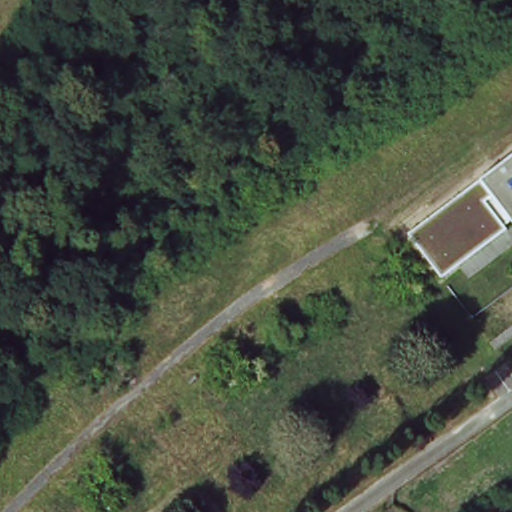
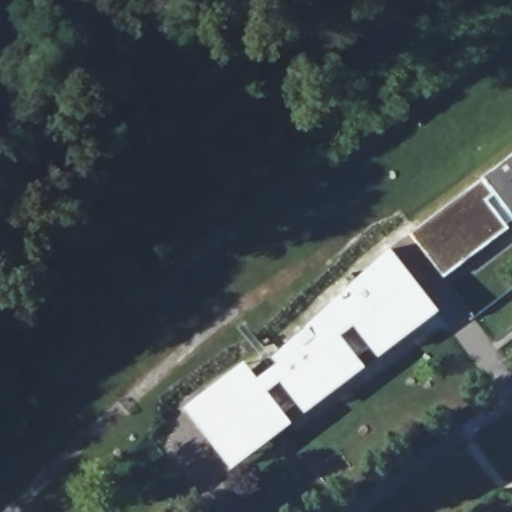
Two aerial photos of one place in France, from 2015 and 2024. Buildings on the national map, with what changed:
unchanged [(495,192),(486,199),(509,230),(444,279),(410,234),(483,178),(512,158),(512,216),(495,192)]
new [(181,409),(241,362),(256,380),(275,363),(269,357),(387,249),(434,313),(227,472),(181,409)]

